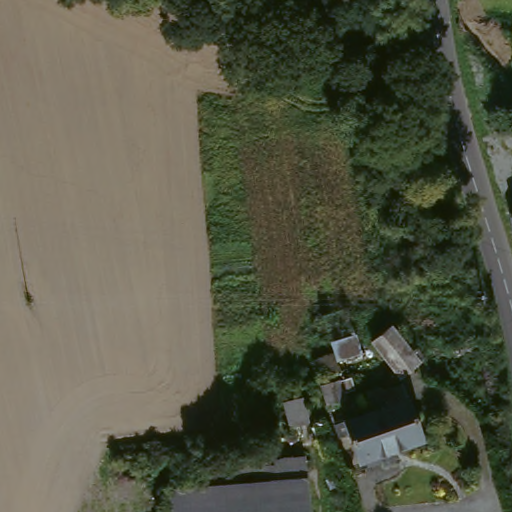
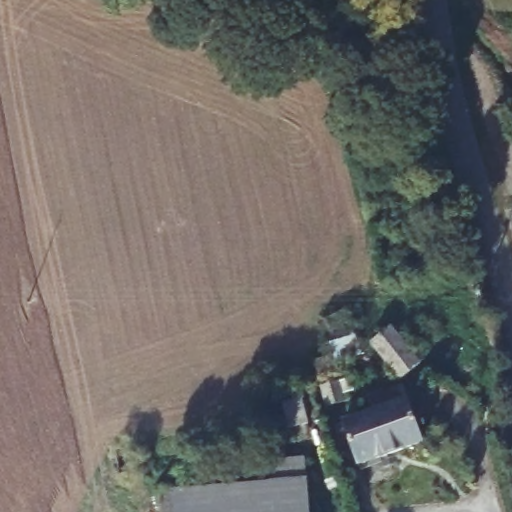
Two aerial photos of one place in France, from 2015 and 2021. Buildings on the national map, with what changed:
unchanged [(512,195),(512,221),(506,197),(512,195)]
unchanged [(512,236),(512,238),(511,236),(512,236)]
unchanged [(383,332),(413,371),(391,388),(361,348),(383,332)]
unchanged [(379,400),(394,394),(416,446),(351,471),(338,428),(366,415),(360,398),(376,392),(379,400)]
unchanged [(301,401),(306,432),(283,437),(279,406),(301,401)]
unchanged [(271,485),(271,468),(303,467),(307,512),(155,512),(154,499),(271,485)]

